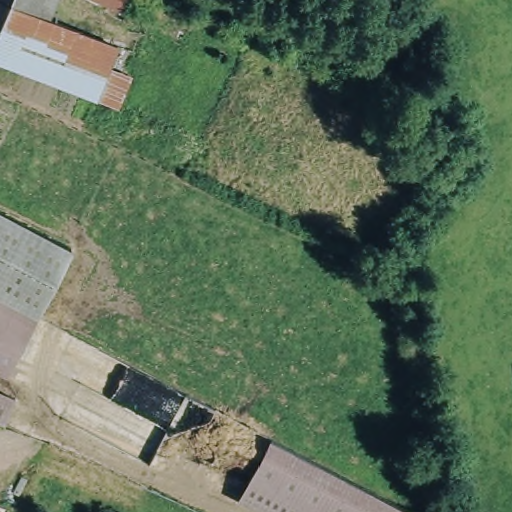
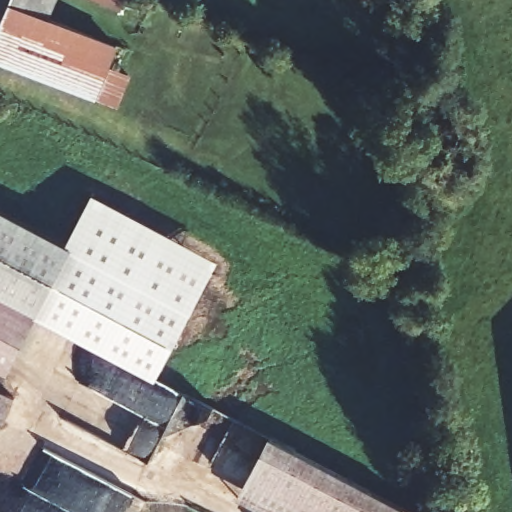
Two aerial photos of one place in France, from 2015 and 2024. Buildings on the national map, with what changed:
unchanged [(42,10),(36,24),(31,37),(21,62),(20,66),(13,62),(7,60),(0,57),(0,0),(46,0),(45,2),(42,10)]
unchanged [(120,0),(121,0),(121,1),(120,0)]
unchanged [(120,45),(98,96),(36,69),(21,62),(31,37),(36,24),(42,10),(120,45)]
new [(45,285),(63,248),(92,194),(218,260),(157,378),(31,311),(45,285)]
unchanged [(30,316),(0,300),(0,215),(63,248),(30,316)]
unchanged [(3,371),(0,369),(0,300),(30,316),(3,371)]
unchanged [(5,423),(0,421),(0,390),(16,397),(5,423)]
unchanged [(419,512),(274,512),(237,492),(252,463),(270,431),(403,502),(420,512),(419,512)]

